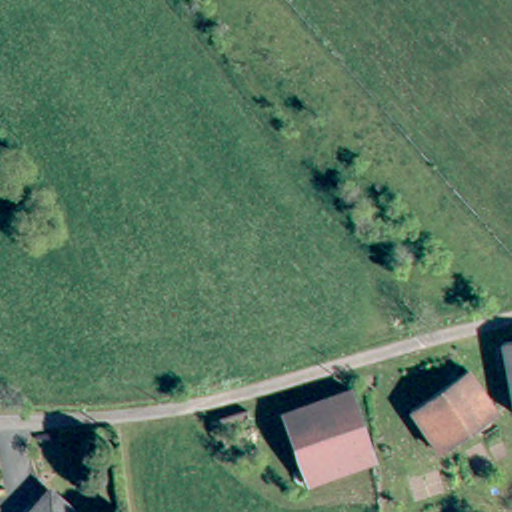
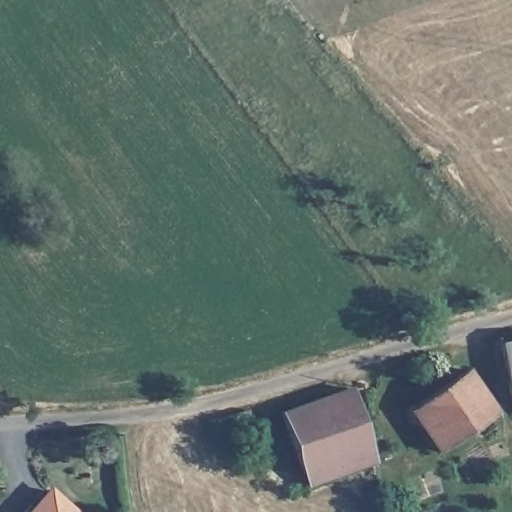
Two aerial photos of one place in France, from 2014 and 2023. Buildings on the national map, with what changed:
unchanged [(512,349),(512,418),(510,419),(510,349),(512,349)]
unchanged [(417,412),(475,375),(505,418),(448,455),(417,412)]
unchanged [(342,474),(308,488),(280,415),(351,392),(377,476),(346,488),(342,474)]
unchanged [(55,493),(77,512),(39,512),(55,493)]

